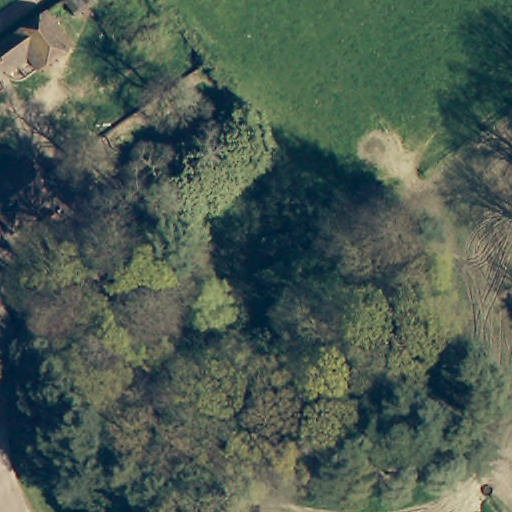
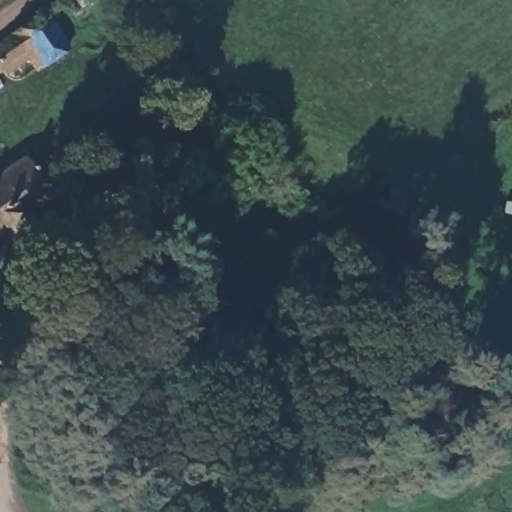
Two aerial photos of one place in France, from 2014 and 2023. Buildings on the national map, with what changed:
unchanged [(65,0),(94,0),(95,2),(76,15),(65,0)]
unchanged [(47,72),(34,57),(0,79),(0,46),(47,14),(75,50),(47,72)]
unchanged [(23,146),(43,172),(56,190),(0,231),(0,162),(23,146)]

